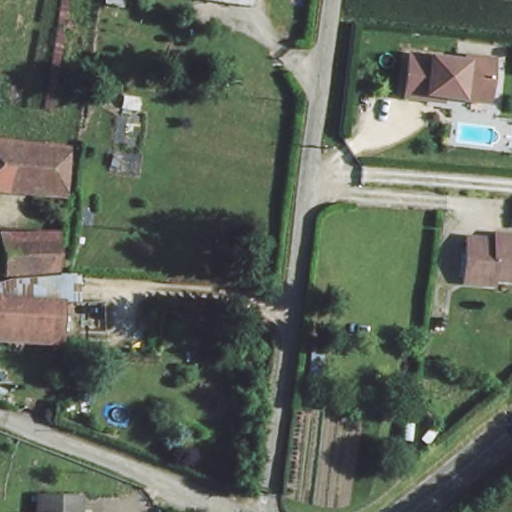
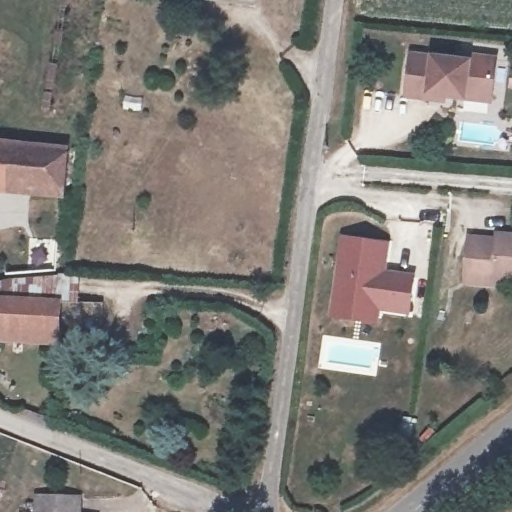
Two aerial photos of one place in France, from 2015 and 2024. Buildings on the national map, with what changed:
unchanged [(428,101),(405,99),(409,57),(465,62),(466,56),(493,59),(490,95),(490,100),(464,98),(444,96),(443,102),(428,101)]
unchanged [(52,193),(0,187),(0,137),(57,145),(52,193)]
unchanged [(0,223),(8,222),(10,238),(50,238),(53,260),(0,263),(0,223)]
unchanged [(512,232),(512,277),(495,276),(495,282),(468,280),(469,238),(499,239),(500,231),(512,232)]
new [(380,311),(379,323),(329,317),(340,235),(389,241),(385,269),(415,272),(410,315),(380,311)]
unchanged [(96,335),(0,327),(0,298),(99,306),(96,335)]
unchanged [(84,492),(82,512),(34,512),(35,492),(84,492)]

